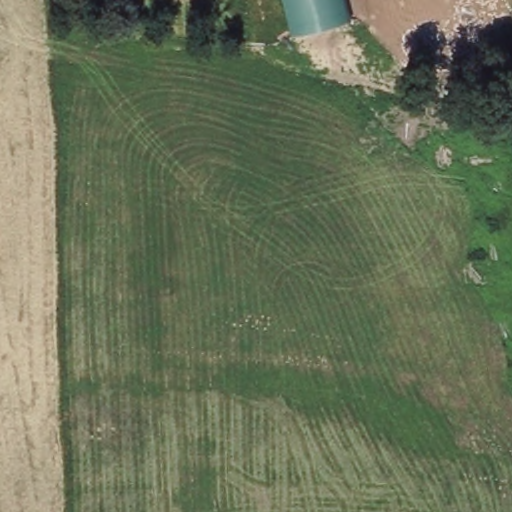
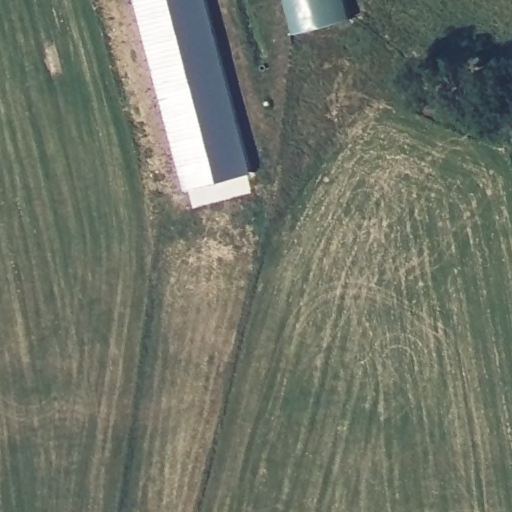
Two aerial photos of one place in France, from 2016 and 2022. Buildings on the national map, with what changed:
new [(250,170),(186,188),(136,0),(206,0),(250,170)]
unchanged [(352,18),(290,35),(281,0),(348,0),(352,18)]

